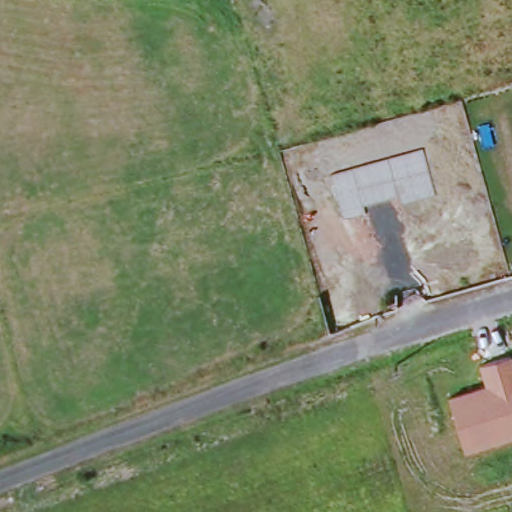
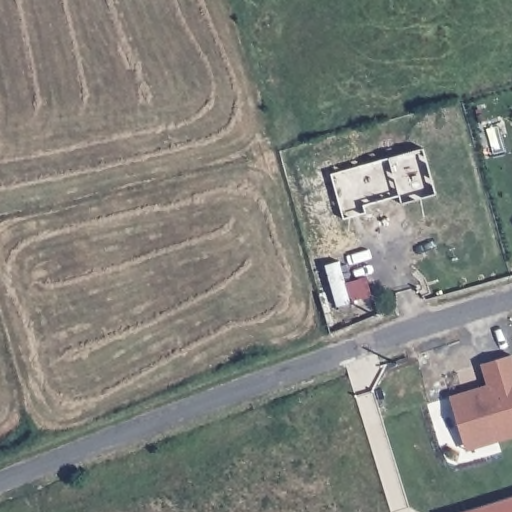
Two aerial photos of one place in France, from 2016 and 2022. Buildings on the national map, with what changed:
unchanged [(343,217),(332,174),(424,149),(434,193),(398,202),(395,195),(362,204),(364,212),(343,217)]
unchanged [(447,399),(485,388),(479,366),(512,358),(512,441),(463,454),(447,399)]
new [(512,512),(466,512),(512,498),(512,512)]

